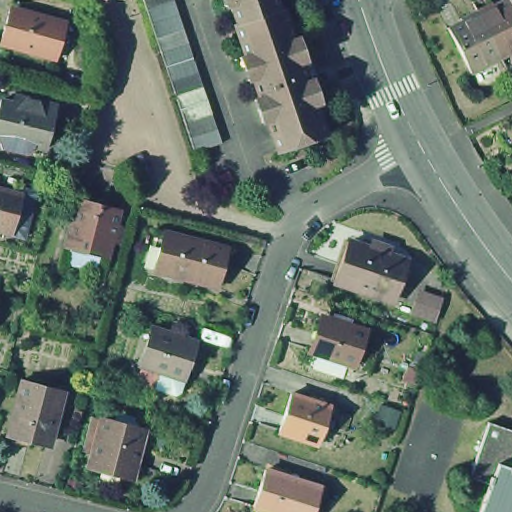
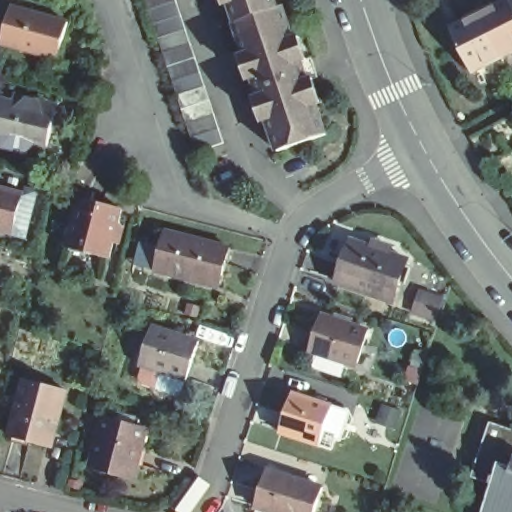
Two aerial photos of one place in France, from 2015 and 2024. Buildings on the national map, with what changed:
unchanged [(190,154),(184,134),(140,0),(170,0),(219,144),(190,154)]
unchanged [(214,4),(213,0),(218,0),(219,2),(214,4)]
unchanged [(245,94),(239,75),(235,76),(227,52),(231,52),(221,22),(225,21),(219,2),(218,0),(266,0),(269,7),(272,6),(284,36),(289,34),(295,57),(300,56),(307,76),(303,77),(310,100),(307,101),(317,132),(264,150),(254,117),(249,119),(242,95),(245,94)]
unchanged [(510,0),(512,0),(512,14),(506,2),(510,0)]
unchanged [(512,14),(512,55),(499,62),(475,15),(506,2),(512,14)]
unchanged [(33,17),(34,12),(62,19),(52,59),(0,43),(0,31),(5,10),(33,17)]
unchanged [(499,62),(466,77),(444,31),(475,15),(499,62)]
unchanged [(29,150),(21,160),(0,154),(0,104),(5,105),(12,98),(37,106),(53,109),(52,116),(42,153),(29,150)]
unchanged [(18,200),(9,238),(0,236),(0,195),(18,200)]
unchanged [(77,211),(85,206),(122,217),(107,266),(64,252),(77,211)]
unchanged [(225,247),(214,285),(152,267),(163,229),(225,247)]
unchanged [(400,260),(387,301),(325,281),(339,240),(400,260)]
unchanged [(359,328),(347,361),(339,359),(334,375),(301,363),(318,313),(359,328)]
unchanged [(170,397),(150,391),(154,376),(137,371),(147,330),(190,342),(180,383),(178,383),(175,394),(170,397)]
unchanged [(63,397),(55,423),(51,422),(44,451),(6,442),(22,387),(63,397)]
unchanged [(325,411),(314,450),(275,438),(287,399),(325,411)]
unchanged [(83,472),(85,465),(95,423),(140,435),(129,476),(127,485),(83,472)]
unchanged [(486,489),(465,482),(484,427),(512,437),(512,512),(478,512),(486,489)]
unchanged [(313,490),(305,512),(246,512),(247,508),(245,507),(257,471),(313,490)]

